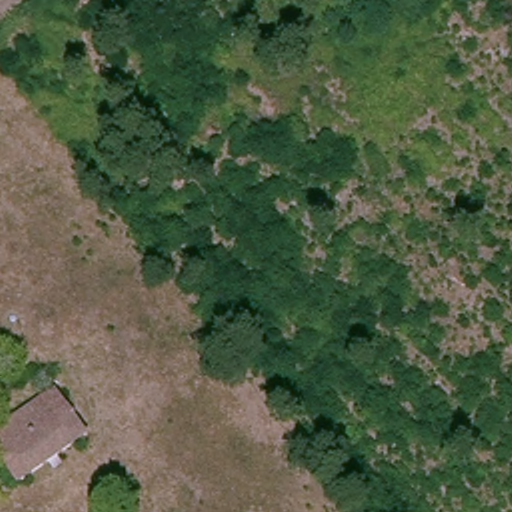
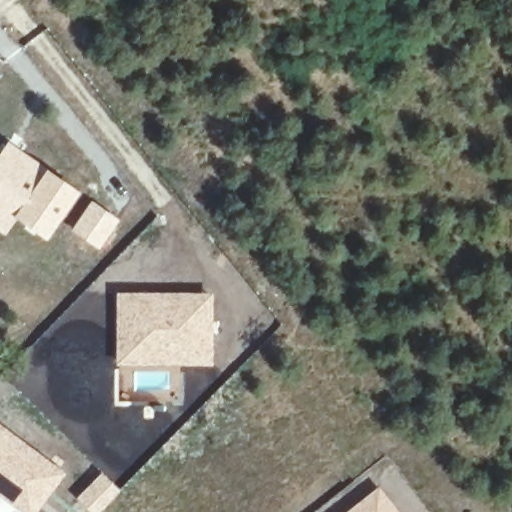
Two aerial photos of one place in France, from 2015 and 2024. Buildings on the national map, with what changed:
new [(8,140),(44,166),(13,216),(16,218),(4,235),(0,233),(0,151),(8,140)]
new [(44,166),(79,191),(45,240),(28,228),(16,218),(13,216),(44,166)]
new [(91,199),(119,219),(98,250),(70,229),(91,199)]
new [(213,293),(213,365),(116,364),(115,291),(213,293)]
demolished [(56,386),(88,428),(20,479),(0,453),(0,427),(56,386)]
new [(66,471),(37,512),(18,512),(7,504),(3,508),(6,511),(5,512),(0,512),(0,423),(66,471)]
demolished [(137,486),(165,464),(183,494),(156,511),(137,486)]
new [(121,491),(100,512),(87,512),(74,498),(102,471),(121,491)]
new [(399,512),(344,512),(378,485),(399,512)]

